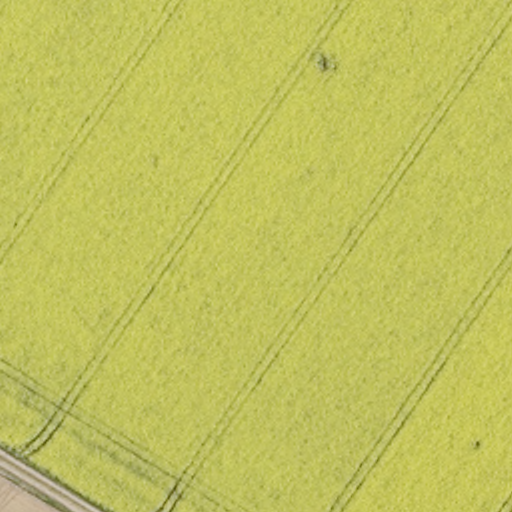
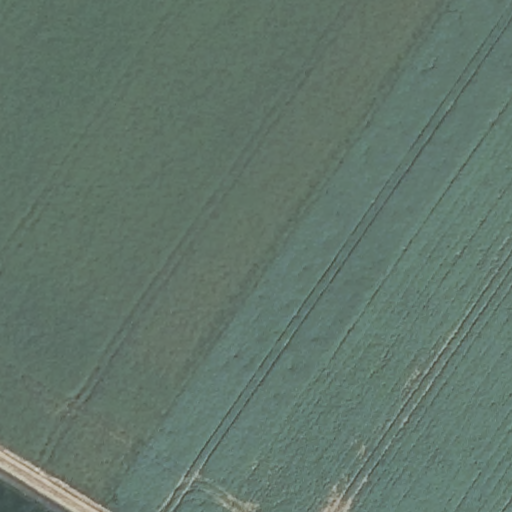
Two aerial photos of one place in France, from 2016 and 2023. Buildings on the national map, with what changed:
[]

